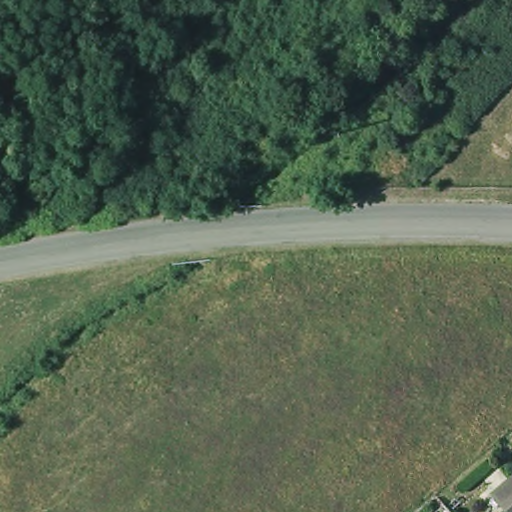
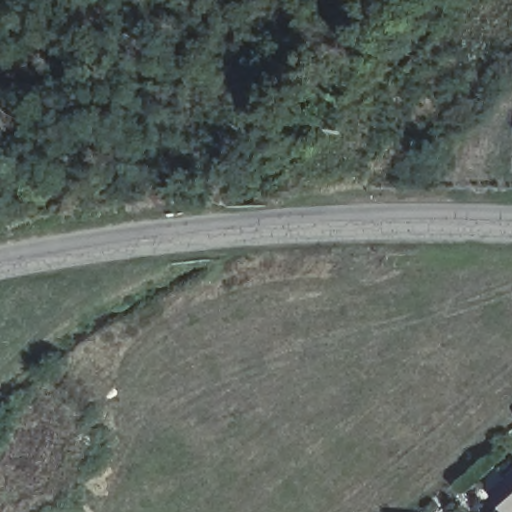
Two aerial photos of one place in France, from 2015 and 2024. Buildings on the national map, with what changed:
unchanged [(512,472),(512,512),(509,512),(491,491),(512,472)]

